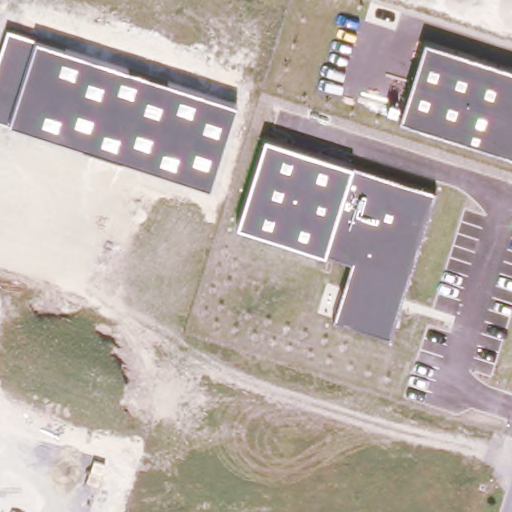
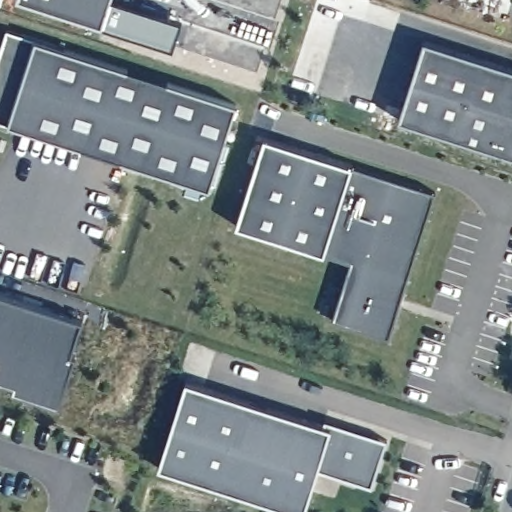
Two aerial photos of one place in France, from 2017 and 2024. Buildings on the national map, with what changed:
new [(107,20),(48,0),(113,0),(107,20)]
unchanged [(0,120),(0,51),(7,29),(34,39),(235,102),(209,186),(9,122),(0,120)]
unchanged [(512,67),(512,154),(398,117),(423,40),(512,67)]
unchanged [(323,253),(235,225),(263,136),(350,163),(434,190),(387,333),(332,317),(352,259),(323,253)]
new [(77,349),(82,350),(65,401),(0,379),(0,286),(88,315),(77,349)]
new [(378,483),(324,466),(310,509),(164,463),(191,377),(350,427),(352,422),(393,436),(378,483)]

